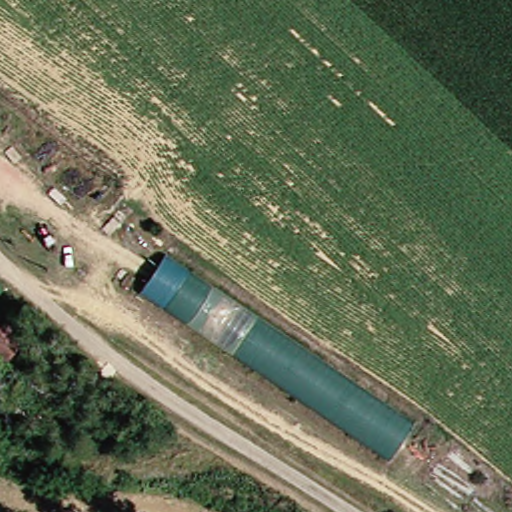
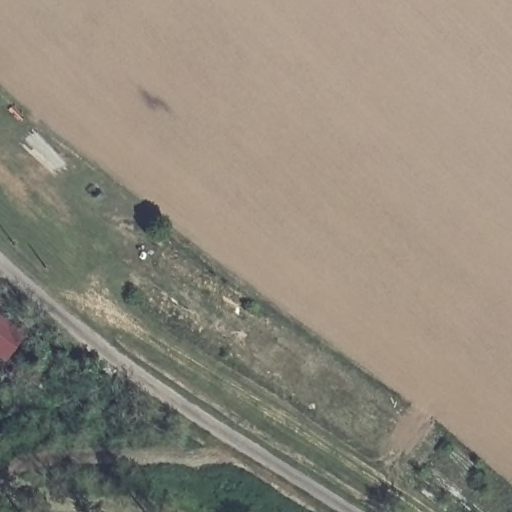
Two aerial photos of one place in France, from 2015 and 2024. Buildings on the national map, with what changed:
demolished [(381,455),(138,292),(157,260),(400,426),(381,455)]
unchanged [(0,351),(0,324),(12,333),(0,351)]
unchanged [(20,385),(6,373),(19,357),(32,369),(20,385)]

